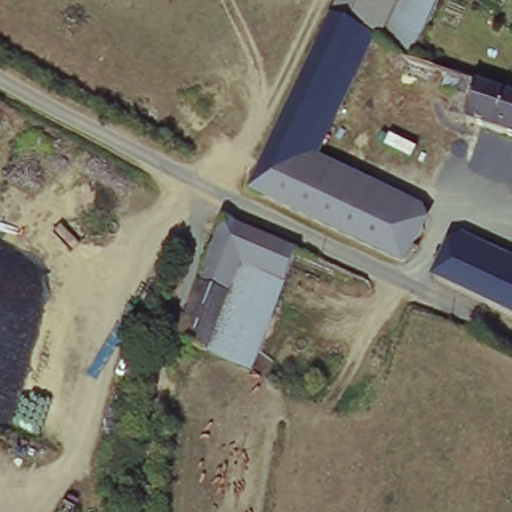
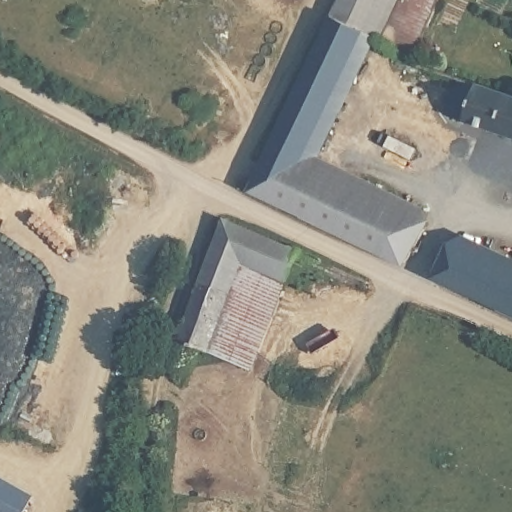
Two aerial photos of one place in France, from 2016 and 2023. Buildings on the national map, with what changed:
unchanged [(337,0),(399,0),(377,45),(370,40),(356,31),(327,20),(337,0)]
unchanged [(415,66),(377,45),(398,0),(445,0),(415,66)]
unchanged [(327,20),(356,31),(297,173),(425,230),(410,265),(252,193),(327,20)]
unchanged [(370,40),(318,158),(419,205),(425,230),(297,173),(356,31),(370,40)]
unchanged [(456,87),(434,79),(438,67),(460,75),(512,92),(512,133),(447,113),(456,87)]
unchanged [(180,356),(186,341),(177,337),(219,219),(300,255),(288,285),(241,266),(208,350),(197,345),(192,360),(180,356)]
unchanged [(467,235),(512,255),(512,270),(456,245),(467,235)]
unchanged [(456,245),(512,270),(512,311),(442,279),(456,245)]
unchanged [(241,266),(288,285),(255,370),(208,350),(241,266)]
new [(28,512),(0,512),(0,476),(37,496),(28,512)]

